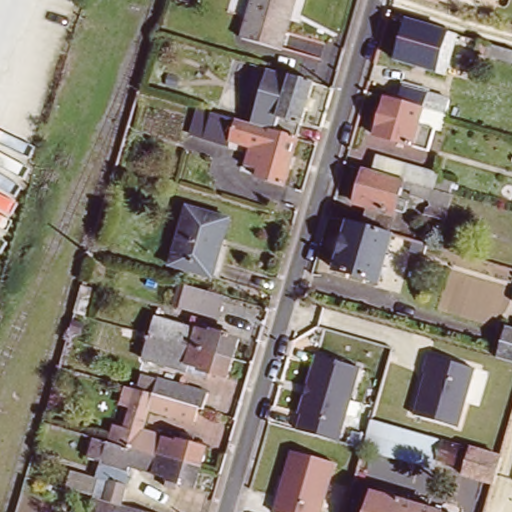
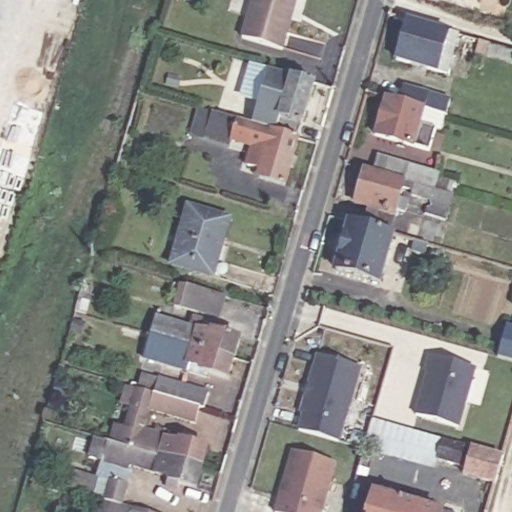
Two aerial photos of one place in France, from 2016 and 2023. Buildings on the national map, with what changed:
unchanged [(245,34),(254,0),(297,0),(285,45),(245,34)]
unchanged [(385,56),(397,16),(447,31),(435,71),(385,56)]
unchanged [(478,42),(512,52),(512,64),(475,52),(478,42)]
unchanged [(266,130),(244,124),(260,67),(282,74),(313,82),(296,139),(266,130)]
unchanged [(424,131),(417,152),(363,136),(375,99),(387,103),(392,87),(439,102),(435,117),(418,112),(413,127),(424,131)]
unchanged [(255,177),(257,170),(242,165),(249,146),(227,140),(225,146),(189,135),(197,110),(244,124),(266,130),(296,139),(282,185),(255,177)]
unchanged [(411,216),(415,202),(397,197),(397,192),(388,189),(385,201),(392,203),(389,212),(382,210),(376,236),(350,227),(355,207),(343,203),(353,170),(362,172),(366,157),(397,167),(424,176),(422,182),(420,190),(440,196),(432,223),(411,216)]
unchanged [(213,252),(207,276),(170,265),(186,209),(227,221),(218,254),(213,252)]
unchanged [(381,237),(367,286),(323,273),(338,224),(350,227),(376,236),(381,237)]
unchanged [(423,258),(410,254),(413,244),(426,248),(423,258)]
unchanged [(185,307),(183,311),(172,307),(177,283),(206,292),(200,311),(185,307)]
unchanged [(90,290),(82,317),(72,313),(80,287),(90,290)]
unchanged [(162,340),(145,335),(144,335),(150,316),(208,333),(210,330),(237,337),(231,360),(162,340)]
unchanged [(507,327),(512,328),(512,362),(497,357),(507,327)]
unchanged [(205,372),(205,377),(196,375),(198,367),(186,364),(184,371),(139,358),(145,335),(162,340),(231,360),(226,378),(205,372)]
unchanged [(475,365),(461,426),(417,417),(432,354),(475,365)]
unchanged [(343,427),(300,415),(316,357),(360,371),(343,427)]
unchanged [(140,437),(155,441),(153,443),(160,446),(162,440),(176,445),(180,434),(192,438),(190,446),(203,451),(198,469),(151,456),(117,446),(134,391),(150,396),(157,379),(199,392),(195,408),(186,406),(182,421),(147,412),(140,437)]
unchanged [(432,453),(430,462),(362,441),(370,414),(437,435),(432,453)]
unchanged [(458,469),(460,462),(432,453),(437,435),(497,452),(489,478),(458,469)]
unchanged [(193,489),(175,483),(173,492),(162,488),(166,478),(127,467),(126,472),(97,464),(104,442),(117,446),(151,456),(198,469),(193,489)]
unchanged [(323,512),(274,512),(292,449),(336,463),(323,512)]
unchanged [(98,478),(125,486),(119,506),(92,497),(98,478)]
unchanged [(357,488),(423,507),(425,501),(429,500),(442,503),(445,507),(443,512),(350,512),(357,488)]
unchanged [(127,508),(140,512),(125,512),(127,508)]

